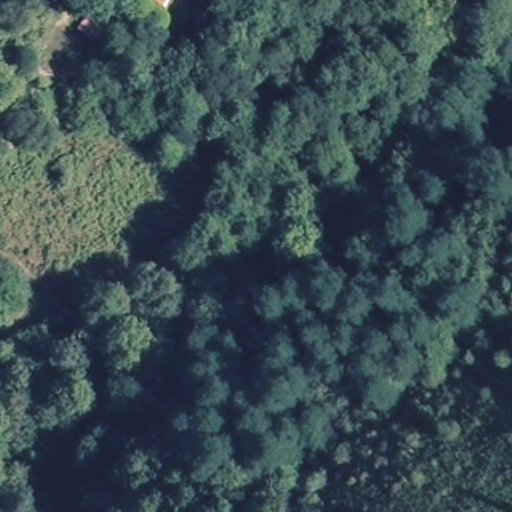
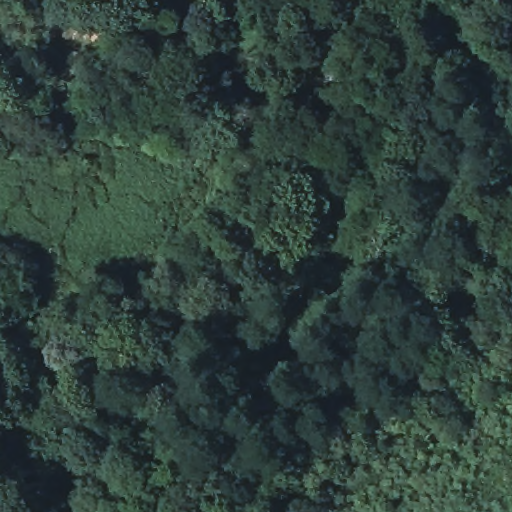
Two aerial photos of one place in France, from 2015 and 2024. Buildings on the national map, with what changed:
unchanged [(159,0),(170,0),(167,5),(159,0)]

